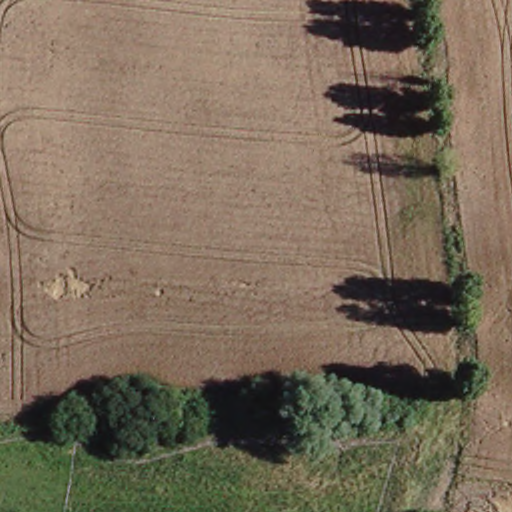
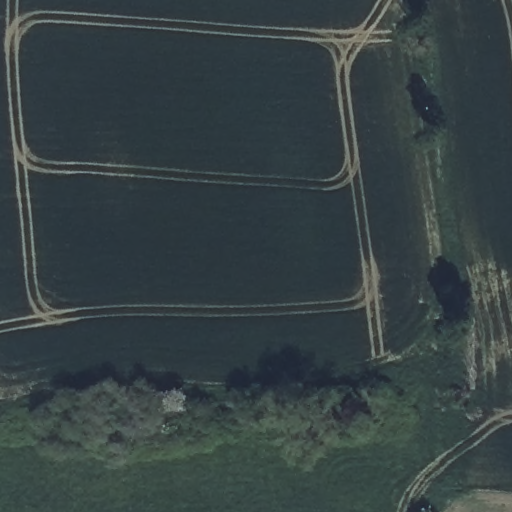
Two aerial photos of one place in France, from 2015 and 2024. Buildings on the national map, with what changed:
[]

